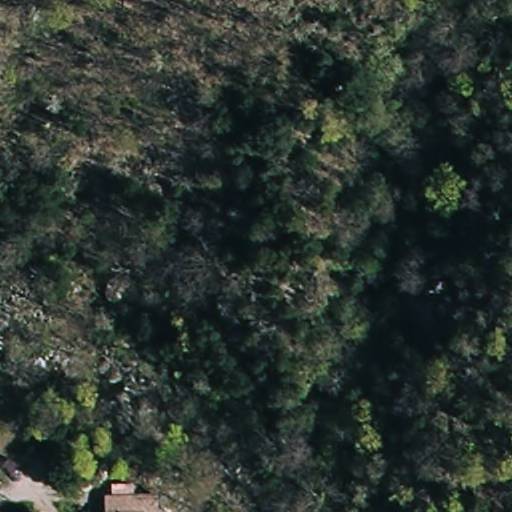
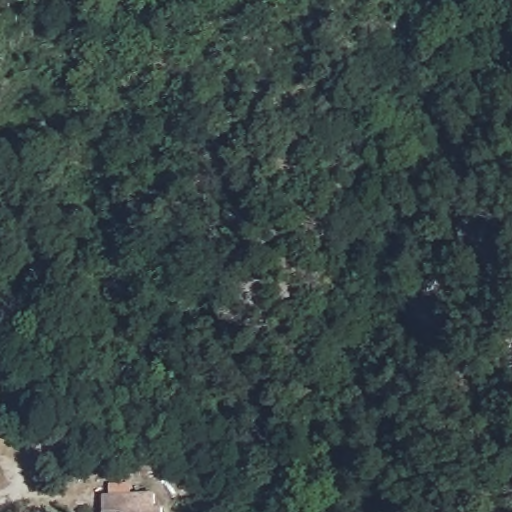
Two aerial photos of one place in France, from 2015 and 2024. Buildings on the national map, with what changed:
unchanged [(145,495),(147,512),(109,512),(108,496),(145,495)]

